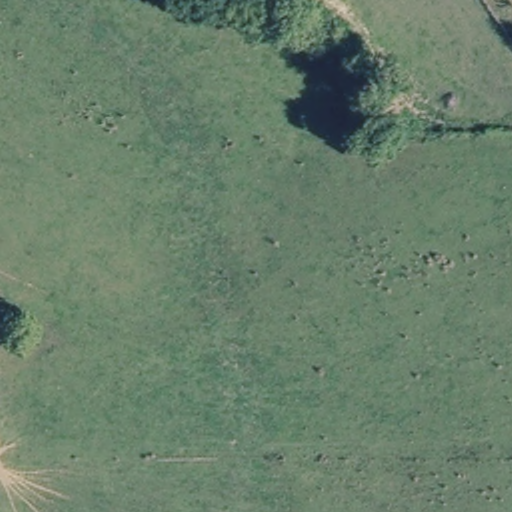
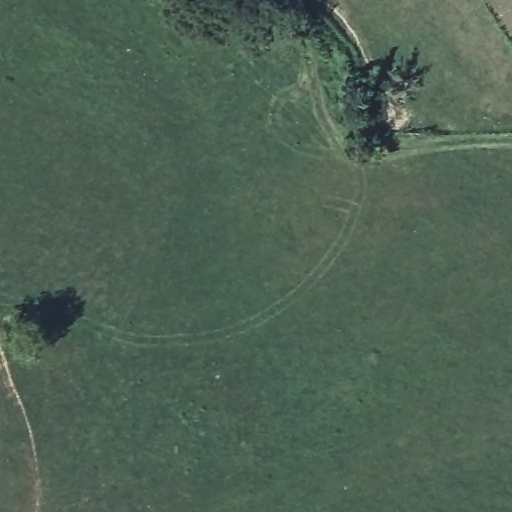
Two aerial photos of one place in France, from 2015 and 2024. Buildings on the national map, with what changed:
[]

